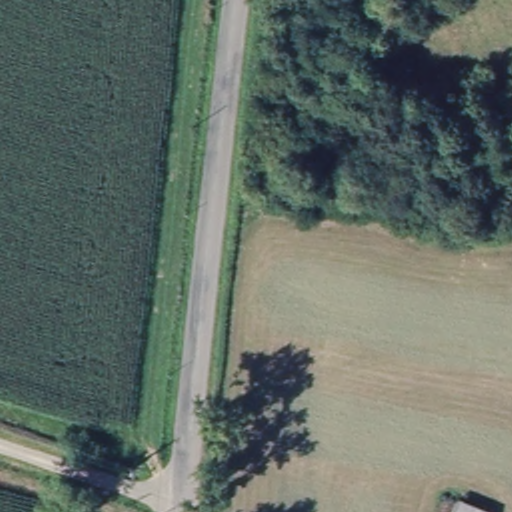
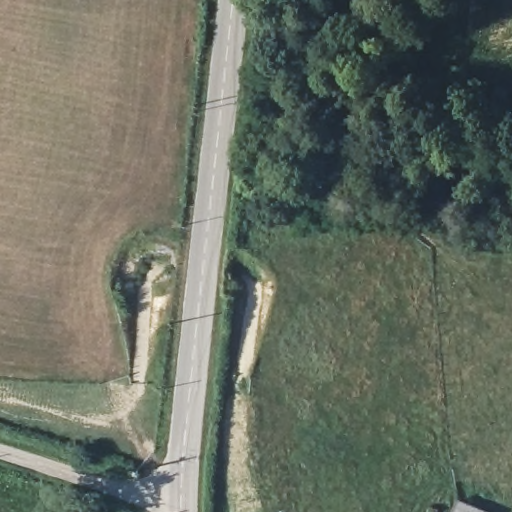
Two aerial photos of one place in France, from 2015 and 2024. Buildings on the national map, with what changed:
unchanged [(448,498),(481,512),(443,512),(448,498)]

